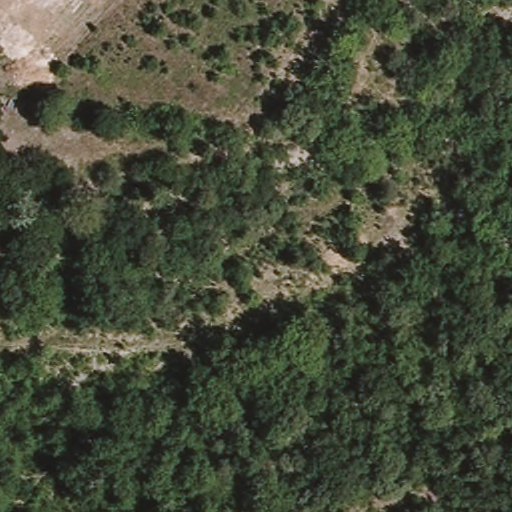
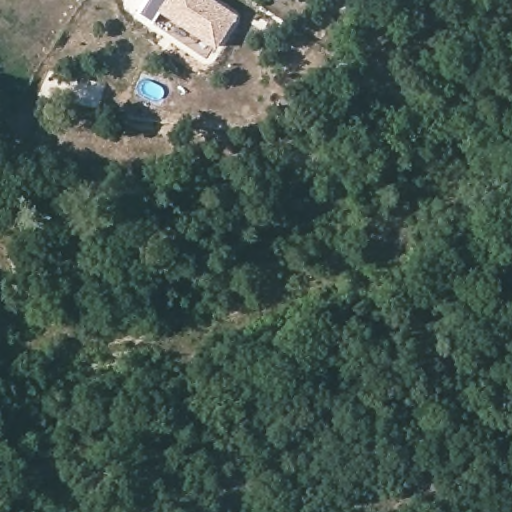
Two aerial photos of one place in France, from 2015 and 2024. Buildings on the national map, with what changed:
new [(137,11),(144,0),(213,0),(236,16),(212,49),(156,10),(151,20),(137,11)]

